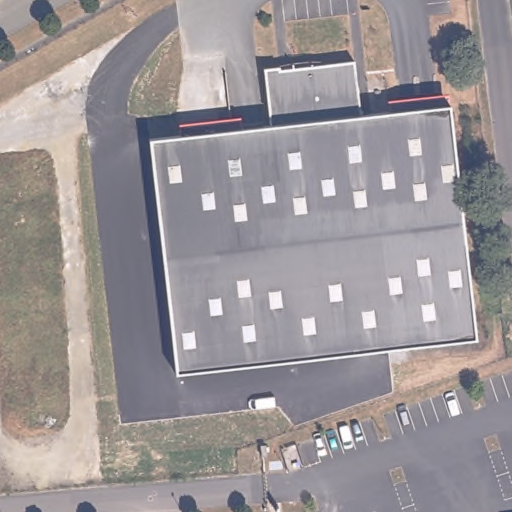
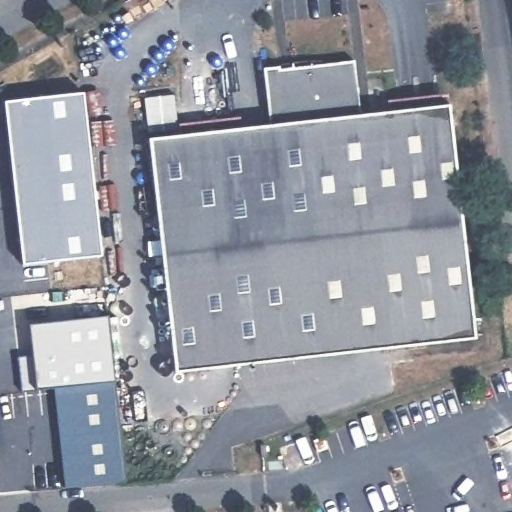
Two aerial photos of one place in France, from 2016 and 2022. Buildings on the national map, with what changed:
unchanged [(267,121),(262,64),(279,63),(280,68),(354,60),(360,110),(448,100),(476,334),(177,368),(151,134),(267,121)]
new [(85,89),(104,254),(25,264),(5,99),(85,89)]
unchanged [(22,391),(18,358),(32,353),(29,324),(105,315),(113,379),(37,388),(22,391)]
new [(65,487),(53,386),(113,379),(126,481),(65,487)]
new [(0,413),(4,447),(0,447),(0,413)]

